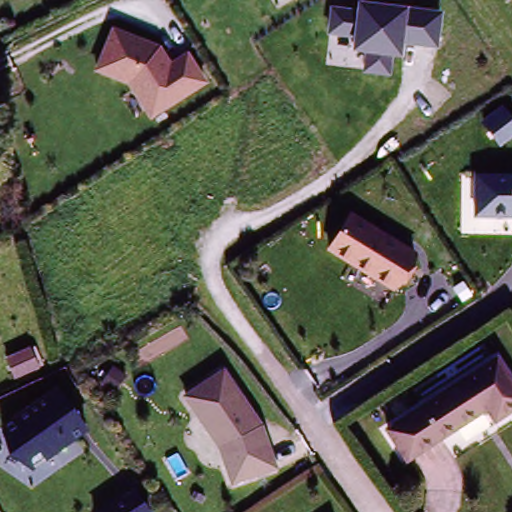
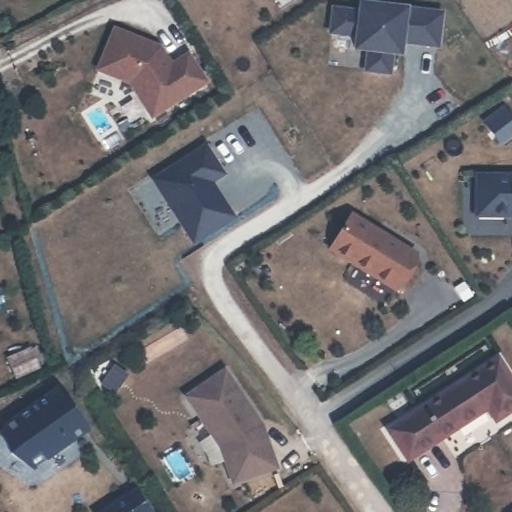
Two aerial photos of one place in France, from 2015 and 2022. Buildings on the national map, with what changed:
unchanged [(357,12),(357,2),(442,13),(438,50),(403,46),(401,57),(393,56),(391,74),(362,72),(363,53),(351,51),(350,41),(327,37),(330,8),(357,12)]
unchanged [(161,46),(170,62),(188,52),(207,87),(147,120),(129,88),(92,72),(110,27),(161,46)]
new [(489,130),(486,126),(505,112),(508,116),(512,121),(512,142),(502,149),(489,130)]
new [(234,221),(195,246),(155,184),(207,151),(225,179),(212,187),(234,221)]
unchanged [(473,174),(512,172),(512,220),(473,218),(473,174)]
unchanged [(421,256),(395,295),(326,251),(354,210),(421,256)]
unchanged [(512,411),(495,421),(487,410),(407,461),(387,430),(497,358),(512,381),(512,411)]
unchanged [(261,425),(276,468),(232,483),(220,448),(185,397),(224,371),(261,425)]
unchanged [(89,433),(32,473),(0,429),(57,387),(89,433)]
unchanged [(151,512),(100,512),(136,488),(151,512)]

